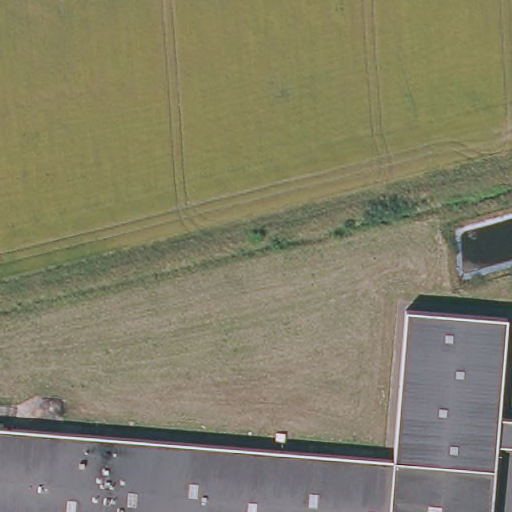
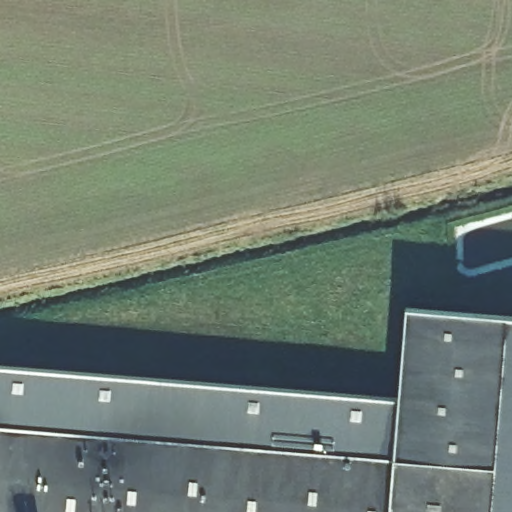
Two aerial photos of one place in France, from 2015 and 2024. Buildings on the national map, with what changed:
unchanged [(507,316),(499,417),(512,418),(512,446),(495,444),(492,468),(391,460),(404,306),(507,316)]
new [(499,417),(507,316),(512,317),(512,418),(499,417)]
new [(391,460),(0,427),(0,367),(396,400),(391,460)]
unchanged [(391,460),(492,468),(488,512),(0,512),(0,427),(391,460)]
new [(492,468),(495,444),(512,446),(512,512),(488,512),(492,468)]

